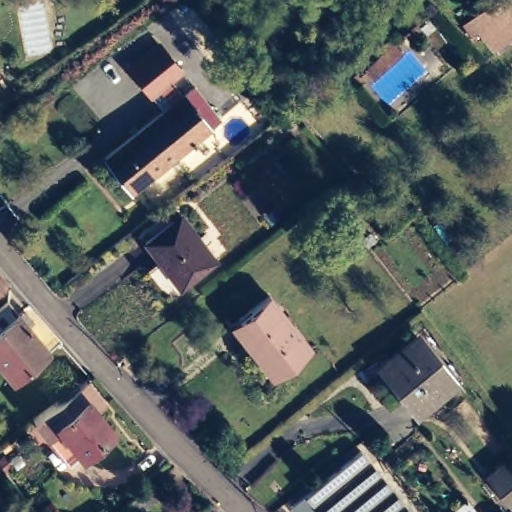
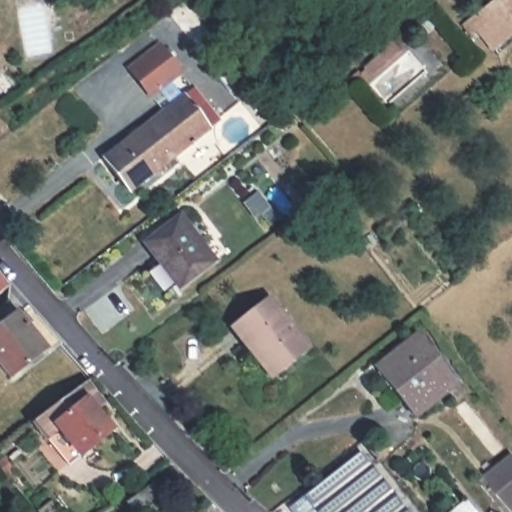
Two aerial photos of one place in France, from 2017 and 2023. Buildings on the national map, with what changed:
unchanged [(512,0),(512,35),(497,49),(470,14),(486,0),(512,0)]
unchanged [(184,74),(150,99),(127,66),(159,39),(184,74)]
unchanged [(127,131),(123,127),(132,120),(136,124),(153,112),(150,107),(159,100),(162,105),(190,85),(215,119),(128,184),(103,150),(127,131)]
unchanged [(182,213),(214,258),(179,284),(176,281),(165,290),(149,268),(161,259),(147,239),(182,213)]
unchanged [(0,292),(0,275),(8,285),(0,292)]
unchanged [(234,323),(241,318),(271,293),(302,334),(310,346),(282,371),(275,376),(265,364),(234,323)]
unchanged [(48,345),(13,373),(0,356),(0,324),(0,306),(12,298),(48,345)]
unchanged [(416,335),(454,378),(419,407),(381,364),(416,335)]
unchanged [(87,381),(104,403),(96,409),(112,431),(68,466),(35,421),(87,381)]
unchanged [(291,503),(311,487),(359,447),(410,512),(299,512),(291,503)]
unchanged [(504,464),(512,474),(512,510),(485,479),(504,464)]
unchanged [(143,481),(152,494),(130,512),(127,512),(118,501),(143,481)]
unchanged [(459,502),(466,512),(446,512),(459,502)]

